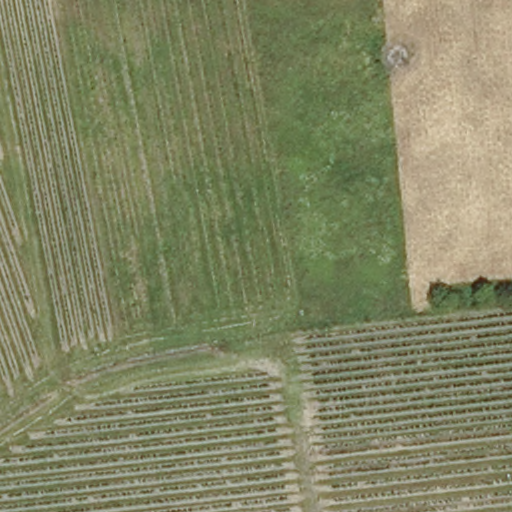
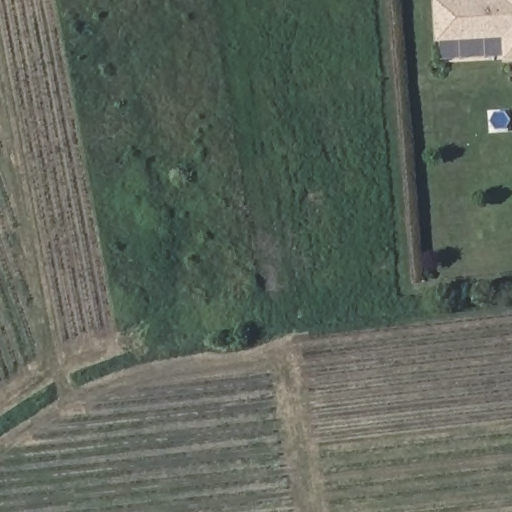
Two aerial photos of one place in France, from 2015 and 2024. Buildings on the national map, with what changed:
new [(438,42),(435,0),(512,0),(512,58),(505,58),(504,37),(438,42)]

